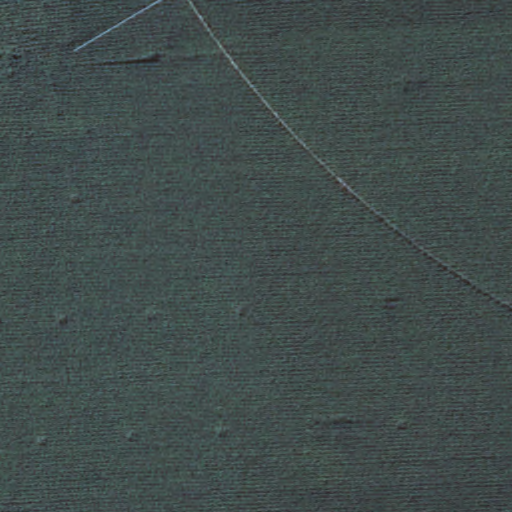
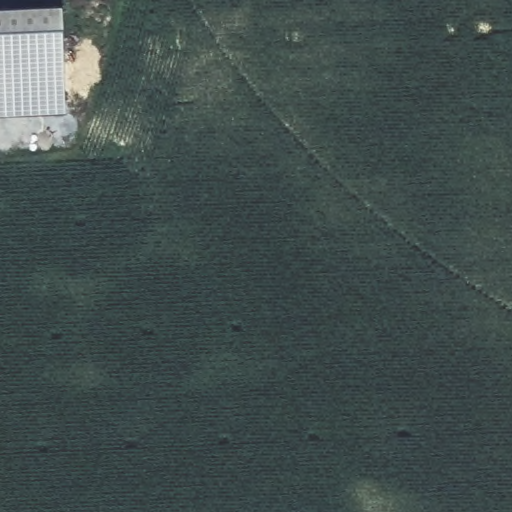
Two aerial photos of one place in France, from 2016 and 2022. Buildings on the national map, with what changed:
new [(0,7),(60,4),(64,113),(0,115),(0,7)]

